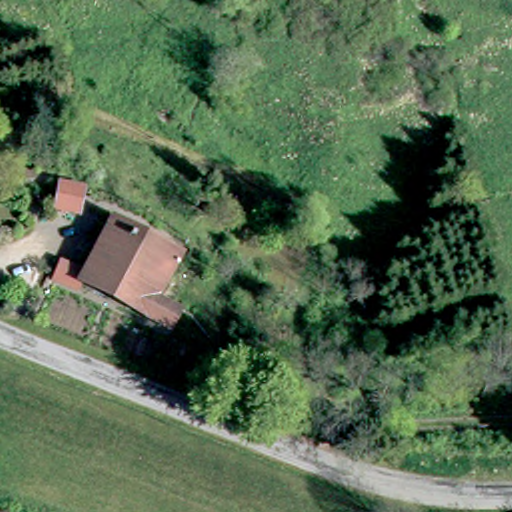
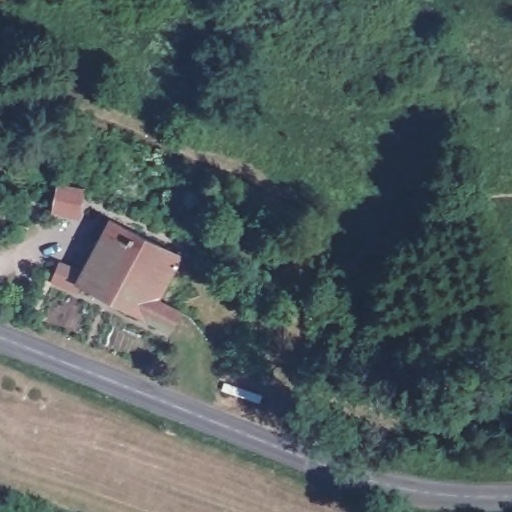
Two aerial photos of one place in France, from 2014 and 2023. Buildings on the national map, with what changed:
unchanged [(74,219),(49,215),(51,194),(76,198),(74,219)]
unchanged [(93,276),(119,223),(186,254),(164,300),(192,313),(184,330),(95,287),(88,285),(85,292),(61,279),(68,265),(93,276)]

